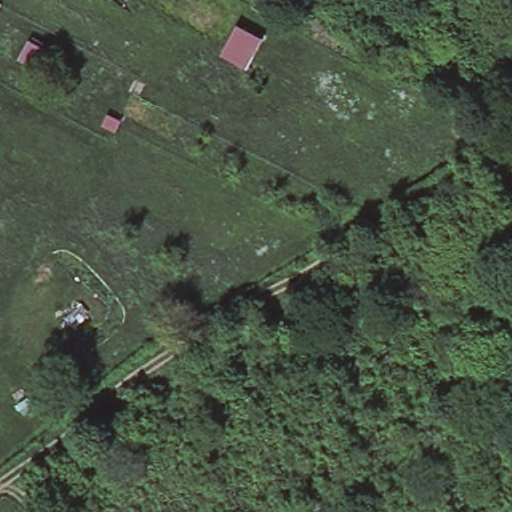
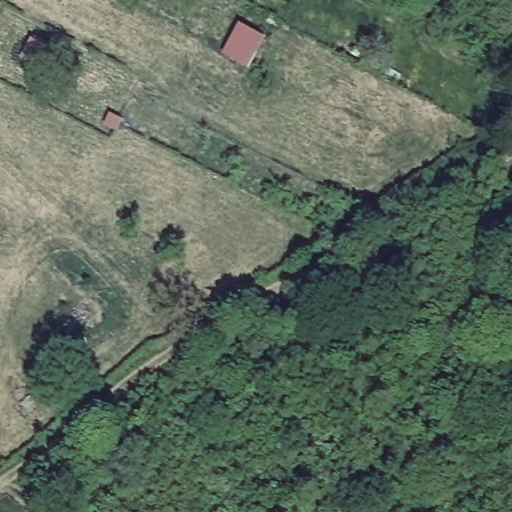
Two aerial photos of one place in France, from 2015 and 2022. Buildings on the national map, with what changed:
unchanged [(51,51),(41,69),(18,57),(28,38),(51,51)]

